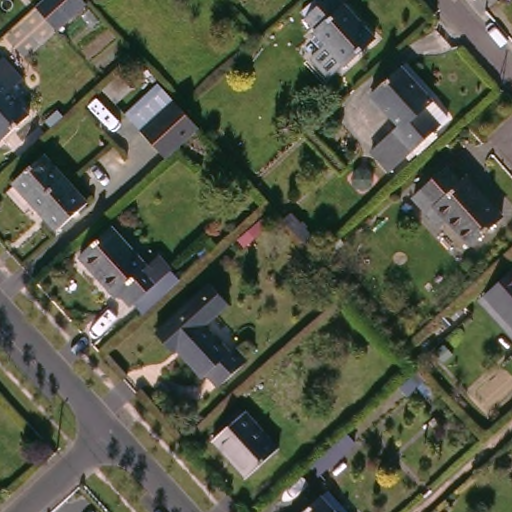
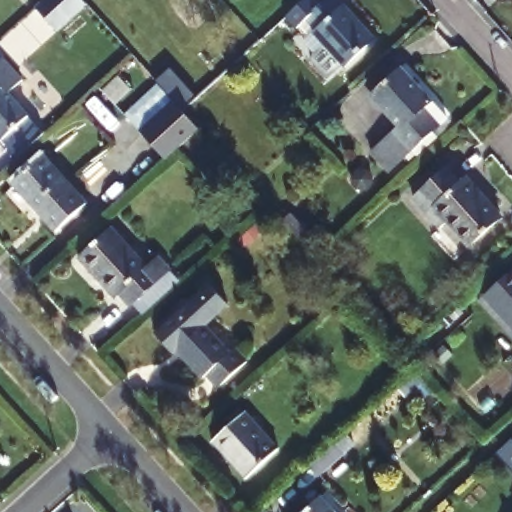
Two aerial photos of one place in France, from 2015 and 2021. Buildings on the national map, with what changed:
unchanged [(43,0),(83,0),(88,5),(57,32),(35,7),(43,0)]
unchanged [(345,4),(356,16),(359,13),(386,43),(356,70),(327,38),(331,35),(322,25),(345,4)]
unchanged [(34,116),(6,142),(0,136),(0,64),(6,59),(26,81),(13,94),(34,116)]
unchanged [(413,67),(443,101),(437,107),(448,120),(416,149),(398,129),(406,121),(382,95),(413,67)]
unchanged [(167,155),(142,126),(176,96),(183,105),(200,125),(167,155)]
unchanged [(21,177),(51,152),(94,204),(64,229),(21,177)]
unchanged [(454,165),(467,180),(471,176),(506,212),(478,240),(457,217),(449,225),(422,196),(454,165)]
unchanged [(114,224),(146,261),(161,248),(172,261),(132,296),(123,286),(119,290),(84,250),(114,224)]
unchanged [(512,321),(486,292),(512,268),(512,321)]
unchanged [(235,305),(214,321),(237,349),(244,343),(259,362),(227,388),(213,371),(205,377),(181,348),(177,351),(161,330),(218,284),(235,305)]
unchanged [(218,441),(252,411),(283,446),(250,476),(218,441)]
unchanged [(332,492),(349,512),(309,512),(332,492)]

